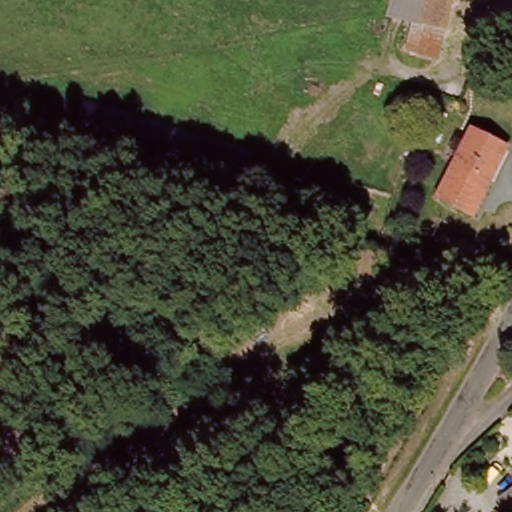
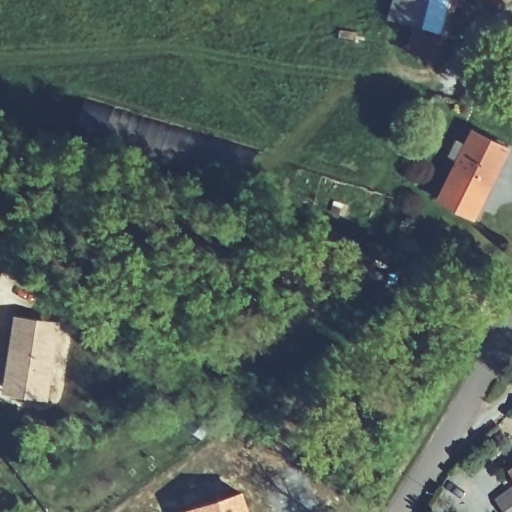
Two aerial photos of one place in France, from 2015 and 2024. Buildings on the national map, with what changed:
unchanged [(436,34),(431,60),(404,52),(410,24),(388,18),(393,0),(425,0),(418,29),(436,34)]
unchanged [(252,153),(241,188),(72,141),(82,106),(252,153)]
unchanged [(431,201),(467,134),(507,155),(472,222),(431,201)]
new [(3,392),(17,315),(61,322),(47,400),(3,392)]
unchanged [(493,502),(512,487),(512,512),(501,512),(493,502)]
new [(242,489),(249,512),(180,512),(178,509),(242,489)]

